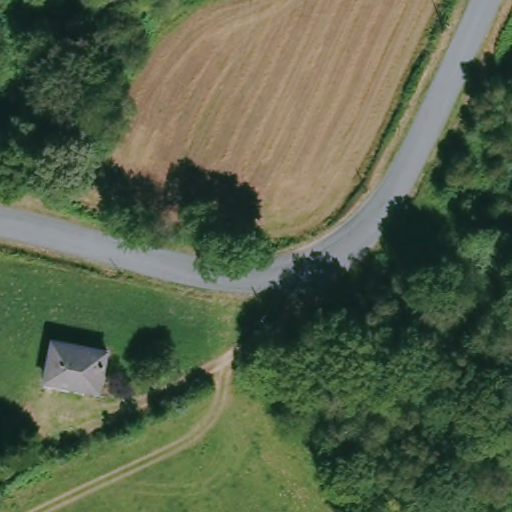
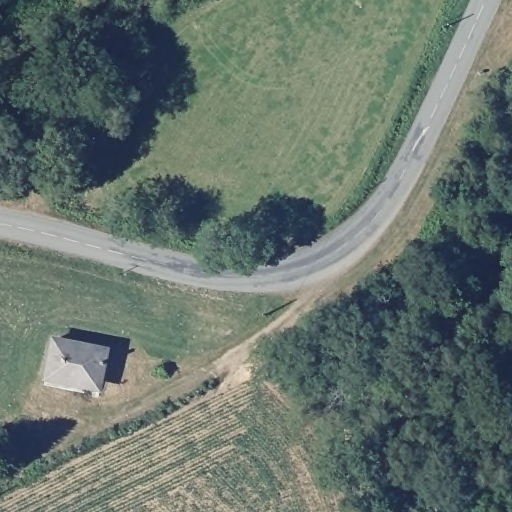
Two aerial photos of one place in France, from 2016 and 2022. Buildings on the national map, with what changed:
unchanged [(107,346),(97,390),(41,378),(48,333),(107,346)]

